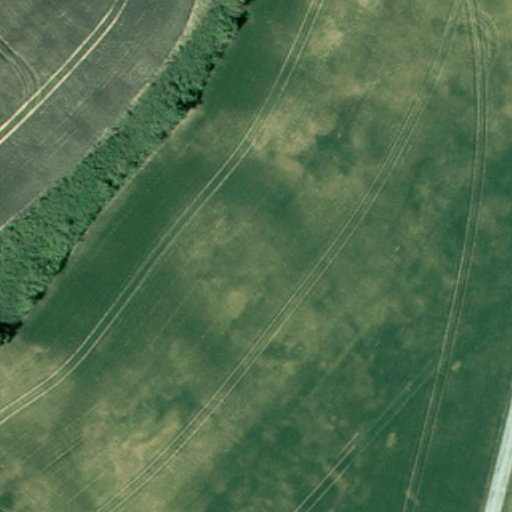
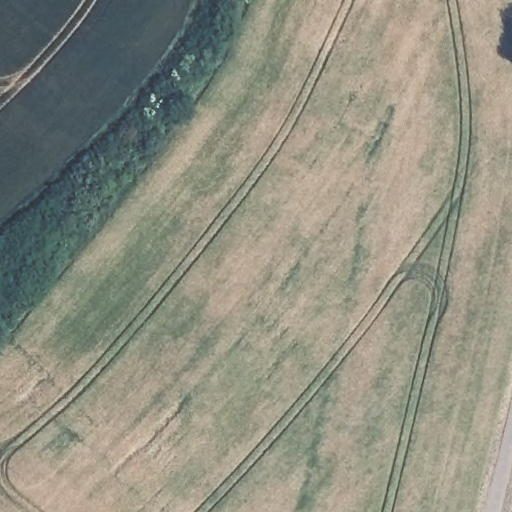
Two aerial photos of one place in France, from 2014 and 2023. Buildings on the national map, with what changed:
[]

